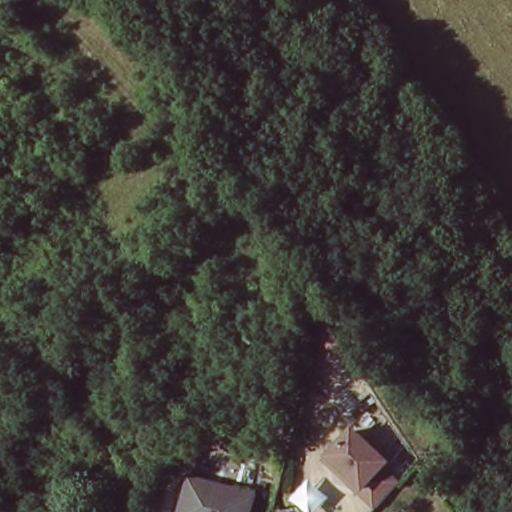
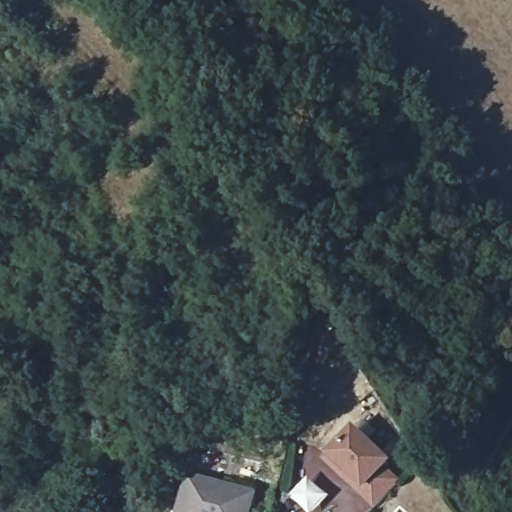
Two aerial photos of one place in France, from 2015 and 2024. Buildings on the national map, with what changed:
unchanged [(354,482),(326,453),(361,417),(414,472),(377,512),(376,512),(348,490),(354,482)]
unchanged [(186,477),(260,489),(256,512),(179,512),(186,477)]

